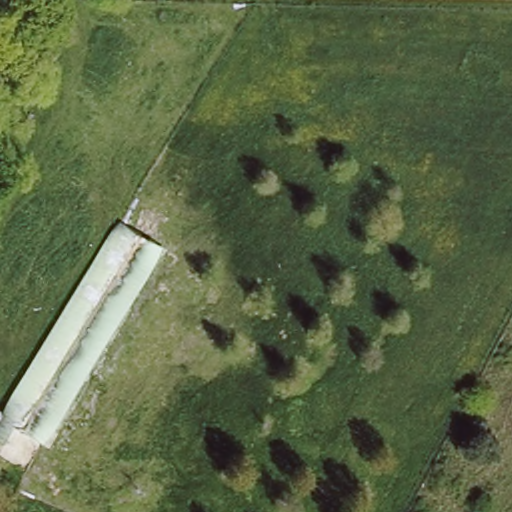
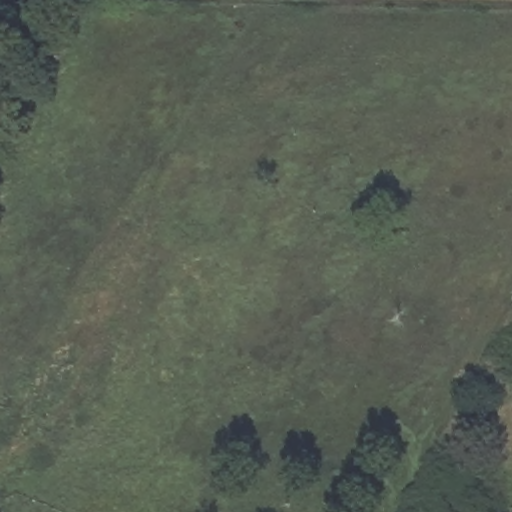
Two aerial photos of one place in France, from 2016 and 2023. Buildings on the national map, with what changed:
demolished [(115,219),(155,243),(32,439),(5,424),(0,433),(0,403),(115,219)]

